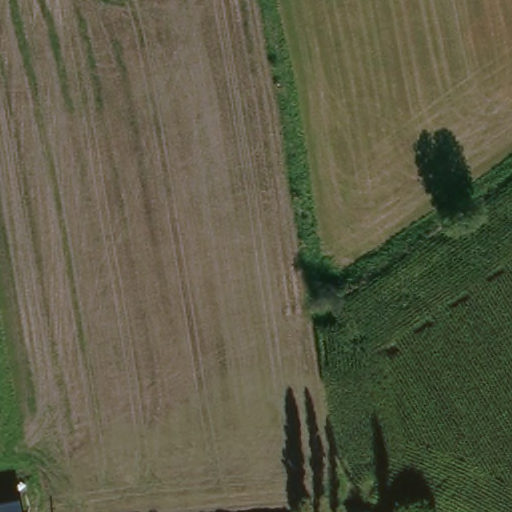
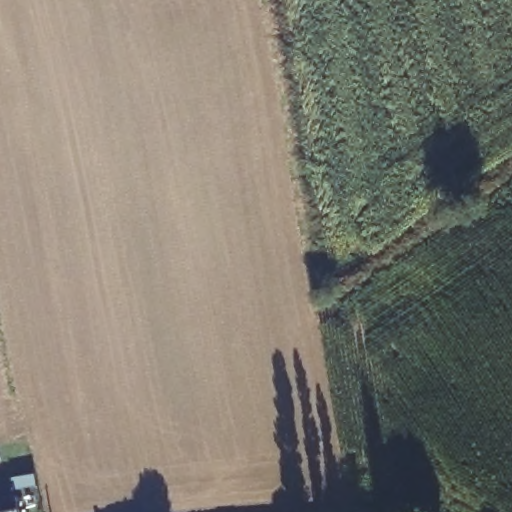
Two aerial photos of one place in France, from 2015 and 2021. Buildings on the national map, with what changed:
unchanged [(19,510),(20,512),(0,512),(0,499),(16,496),(19,510)]

